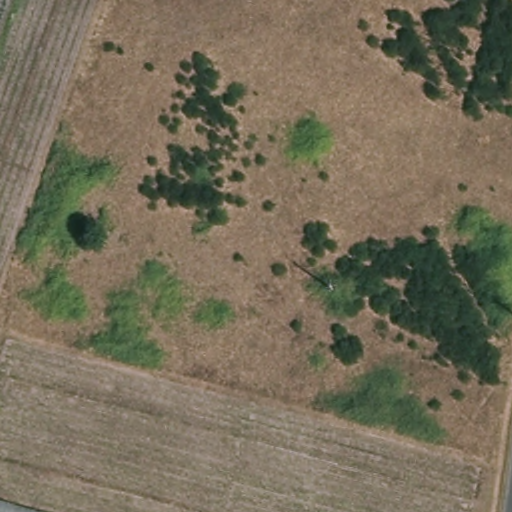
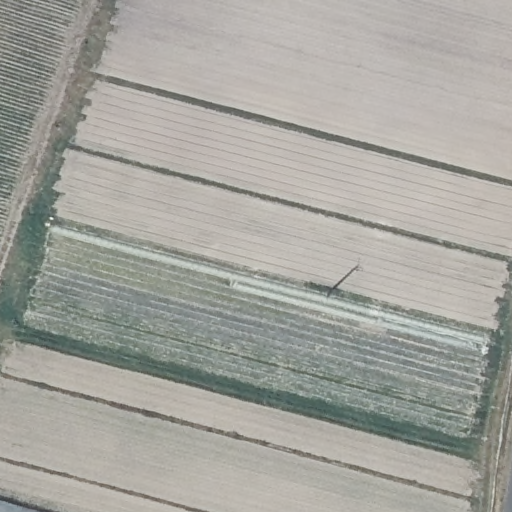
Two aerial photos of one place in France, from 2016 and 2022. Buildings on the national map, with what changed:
unchanged [(0,512),(0,504),(31,512),(0,512)]

